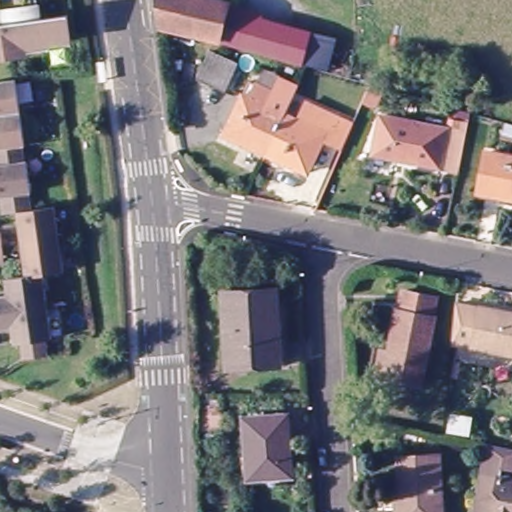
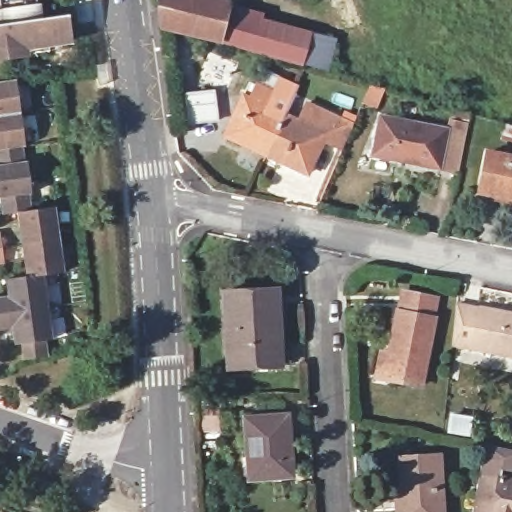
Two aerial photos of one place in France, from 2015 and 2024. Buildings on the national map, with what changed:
unchanged [(22,0),(26,0),(28,14),(30,26),(54,22),(64,21),(65,26),(67,46),(45,49),(46,57),(0,63),(0,4),(22,0)]
unchanged [(226,12),(217,47),(196,42),(159,32),(154,0),(193,0),(226,9),(226,12)]
unchanged [(344,42),(347,42),(343,60),(340,76),(276,61),(217,47),(226,12),(344,42)]
unchanged [(224,89),(196,79),(206,52),(234,62),(224,89)]
unchanged [(276,165),(272,170),(239,154),(241,150),(219,140),(237,102),(242,104),(250,90),(268,99),(275,84),(291,91),(289,97),(302,102),(300,106),(337,122),(346,127),(335,153),(326,149),(317,144),(304,172),(302,178),(294,175),(276,165)]
unchanged [(20,87),(25,119),(29,151),(26,152),(28,169),(32,168),(36,198),(32,199),(35,216),(57,212),(67,276),(52,277),(46,278),(47,291),(55,342),(48,343),(51,360),(41,362),(26,363),(24,347),(17,348),(16,339),(15,332),(1,333),(0,334),(0,303),(10,302),(7,285),(30,282),(27,262),(20,219),(5,221),(2,204),(0,204),(0,90),(20,87)]
unchanged [(372,151),(380,113),(466,131),(458,169),(372,151)]
unchanged [(482,189),(489,156),(512,161),(512,200),(510,200),(509,205),(480,198),(482,189)]
unchanged [(3,232),(6,250),(7,262),(0,264),(0,233),(3,232)]
unchanged [(286,367),(272,368),(230,369),(228,291),(278,290),(279,330),(285,330),(286,367)]
unchanged [(385,357),(397,359),(397,350),(395,348),(399,317),(402,316),(406,294),(437,298),(435,320),(437,321),(427,390),(393,384),(382,382),(385,357)]
unchanged [(459,302),(512,314),(512,359),(453,347),(459,302)]
unchanged [(223,433),(208,433),(206,404),(221,403),(223,433)]
unchanged [(292,477),(251,479),(249,420),(288,418),(292,477)]
unchanged [(492,451),(512,455),(512,475),(507,474),(506,485),(512,486),(512,512),(478,512),(492,451)]
unchanged [(398,498),(402,497),(401,462),(438,460),(440,495),(440,512),(399,512),(398,498)]

